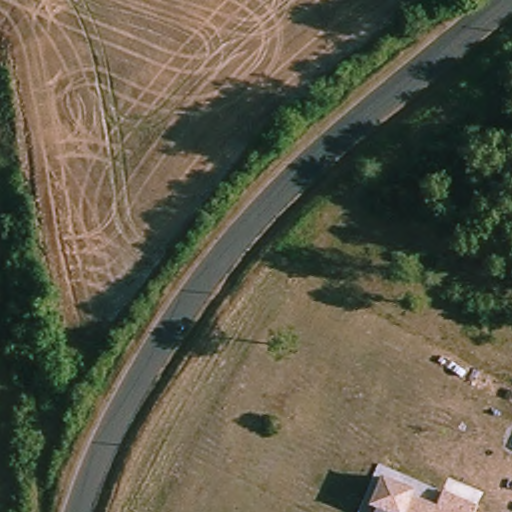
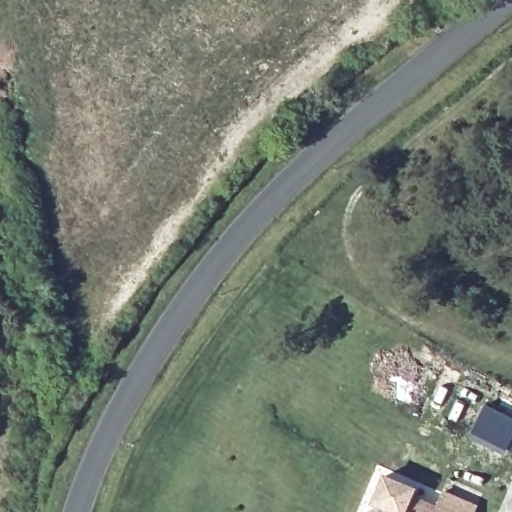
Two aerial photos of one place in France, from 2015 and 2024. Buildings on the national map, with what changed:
new [(484,404),(512,418),(512,440),(506,454),(468,437),(484,404)]
unchanged [(387,481),(416,496),(413,502),(435,512),(381,512),(374,508),(387,481)]
unchanged [(478,512),(439,512),(446,497),(478,512)]

